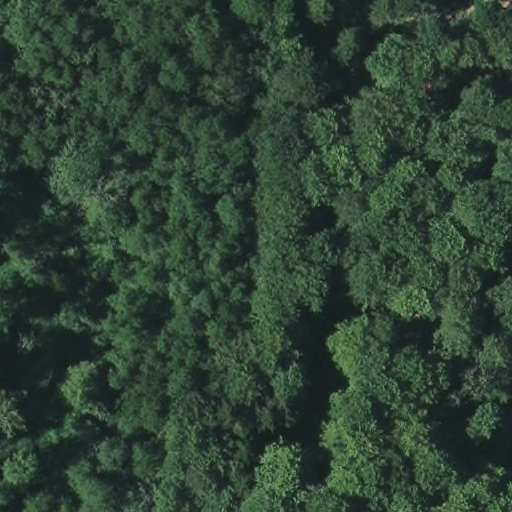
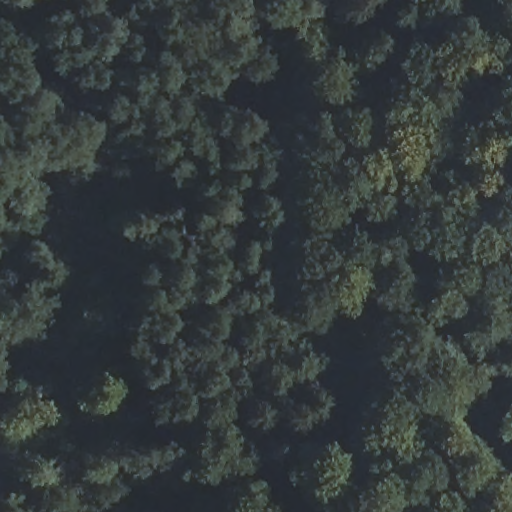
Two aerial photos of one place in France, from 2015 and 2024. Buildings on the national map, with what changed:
[]

